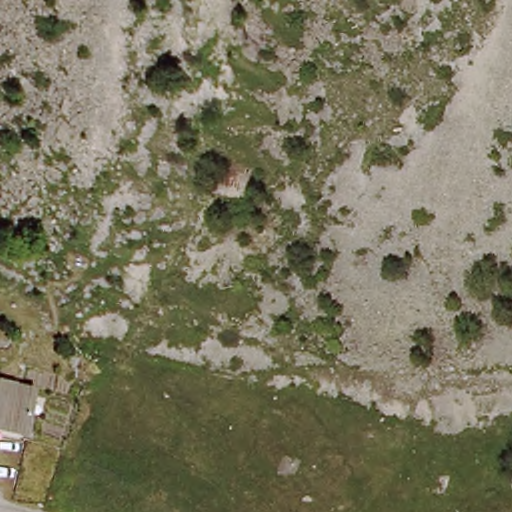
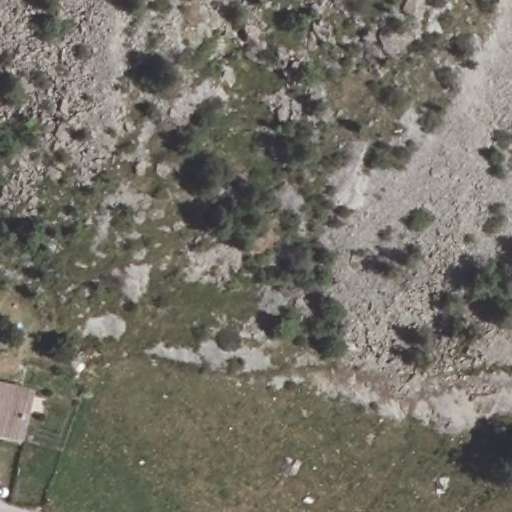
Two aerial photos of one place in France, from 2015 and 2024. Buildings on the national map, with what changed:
unchanged [(31,391),(22,434),(0,430),(0,385),(27,390),(31,391)]

